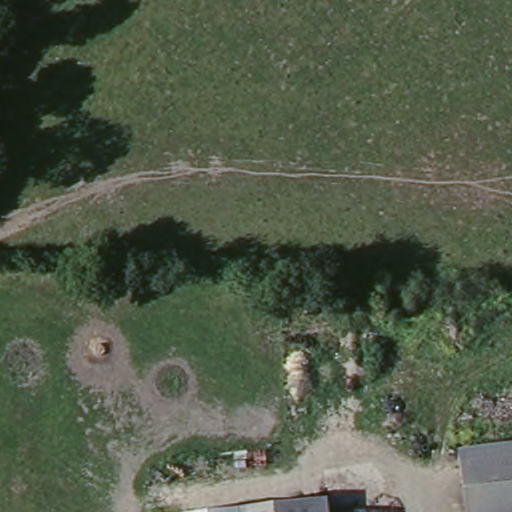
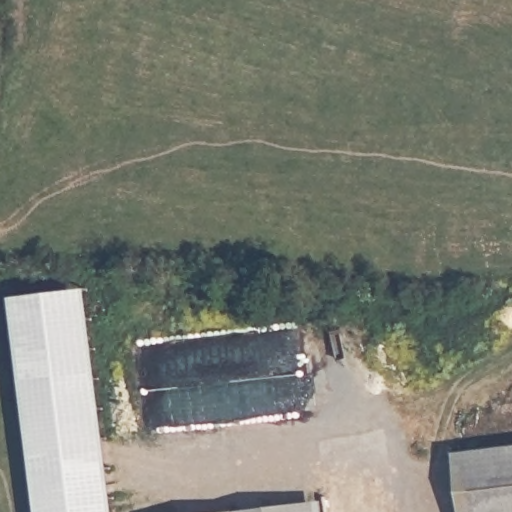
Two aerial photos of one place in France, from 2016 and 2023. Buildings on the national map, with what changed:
new [(14,299),(91,289),(118,512),(40,512),(14,299)]
unchanged [(512,512),(463,512),(455,454),(512,447),(512,512)]
unchanged [(327,503),(329,512),(255,512),(327,503)]

